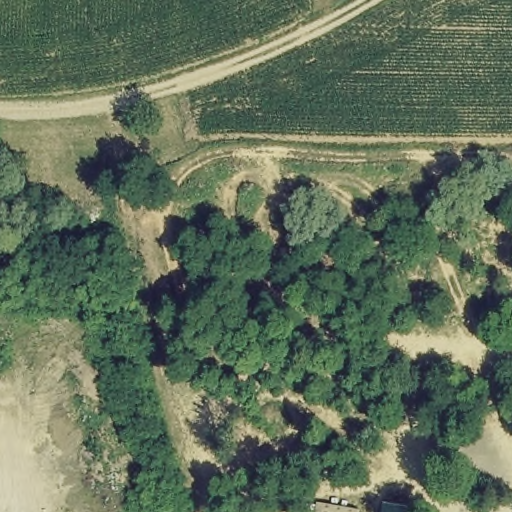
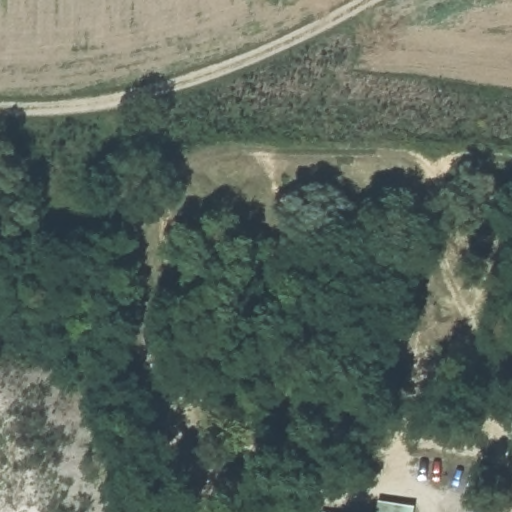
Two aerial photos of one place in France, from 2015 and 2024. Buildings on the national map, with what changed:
unchanged [(413,509),(413,512),(378,512),(379,503),(413,509)]

